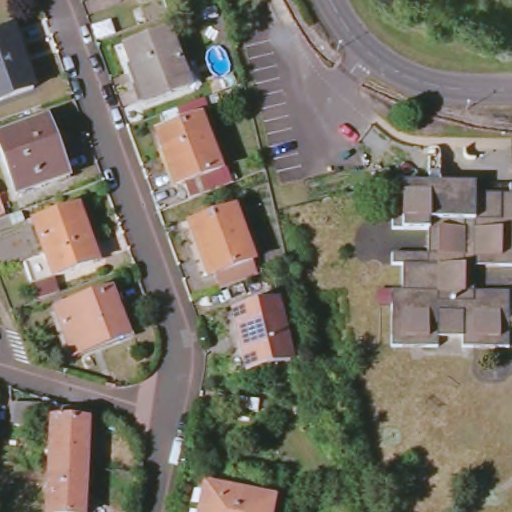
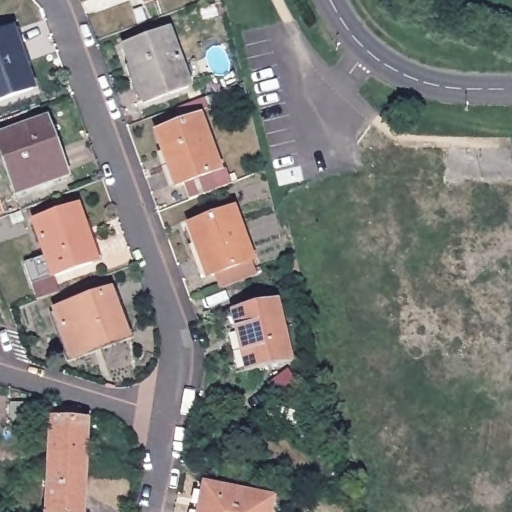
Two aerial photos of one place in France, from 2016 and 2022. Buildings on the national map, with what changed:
unchanged [(33,90),(0,101),(0,37),(13,32),(33,90)]
unchanged [(126,50),(166,32),(187,88),(146,104),(126,50)]
unchanged [(173,167),(170,168),(157,134),(199,119),(218,171),(180,186),(173,167)]
unchanged [(0,139),(45,122),(52,140),(46,142),(60,180),(18,194),(0,147),(0,139)]
demolished [(462,347),(462,342),(437,341),(437,347),(392,346),(392,292),(401,292),(401,266),(392,266),(393,254),(427,255),(428,231),(393,231),(393,219),(402,219),(403,196),(393,195),(393,184),(428,184),(429,157),(435,158),(434,154),(429,154),(430,149),(430,147),(435,147),(436,148),(437,149),(438,150),(440,151),(440,152),(440,185),(475,185),(475,194),(510,194),(510,185),(512,185),(512,266),(474,266),(474,292),(508,293),(508,348),(462,347)]
unchanged [(189,217),(232,201),(255,267),(221,280),(216,267),(209,269),(200,271),(188,237),(195,235),(189,217)]
unchanged [(35,283),(27,262),(46,255),(35,224),(77,209),(88,242),(83,242),(91,263),(55,277),(35,283)]
unchanged [(55,312),(110,292),(126,336),(71,356),(55,312)]
unchanged [(235,314),(276,305),(290,362),(248,371),(235,314)]
unchanged [(6,420),(6,402),(51,402),(51,407),(75,407),(74,417),(80,418),(78,477),(77,512),(43,512),(46,421),(6,420)]
unchanged [(272,500),(269,512),(200,512),(205,487),(272,500)]

